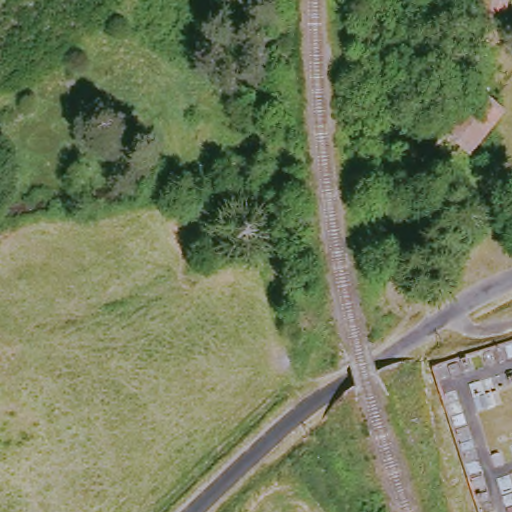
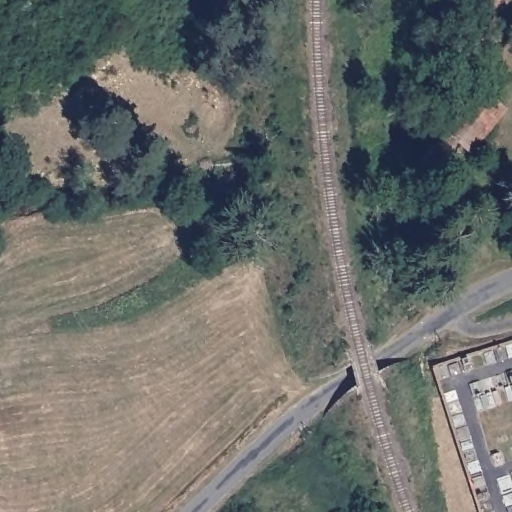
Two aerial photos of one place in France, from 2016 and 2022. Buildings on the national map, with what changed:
unchanged [(470,39),(477,0),(499,0),(504,1),(499,42),(470,39)]
unchanged [(504,121),(473,157),(436,126),(467,90),(504,121)]

